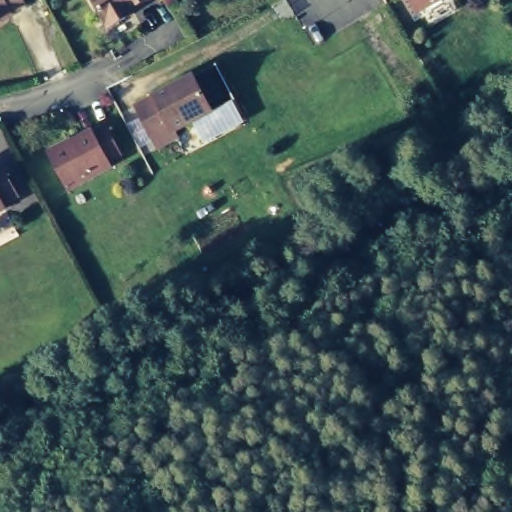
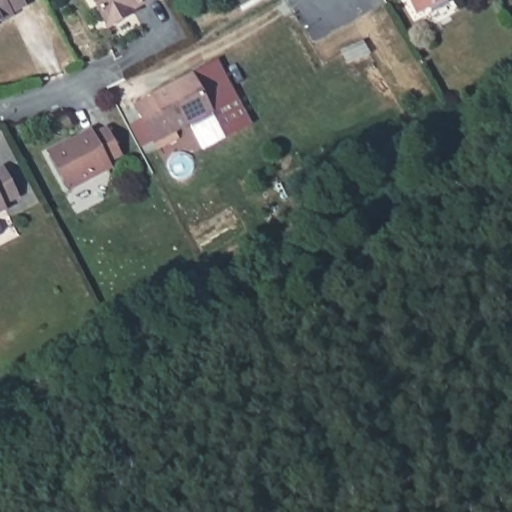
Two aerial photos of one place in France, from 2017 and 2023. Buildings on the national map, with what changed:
unchanged [(0,24),(0,0),(27,0),(30,4),(15,12),(16,14),(7,19),(0,24)]
unchanged [(132,17),(114,27),(98,0),(153,0),(136,9),(138,13),(132,17)]
unchanged [(417,15),(408,0),(444,0),(417,15)]
unchanged [(216,111),(178,131),(181,138),(163,147),(141,106),(198,76),(216,111)]
unchanged [(100,140),(112,133),(127,160),(114,167),(116,172),(73,195),(53,158),(96,135),(100,140)]
unchanged [(22,202),(8,209),(10,214),(0,219),(0,178),(8,174),(22,202)]

